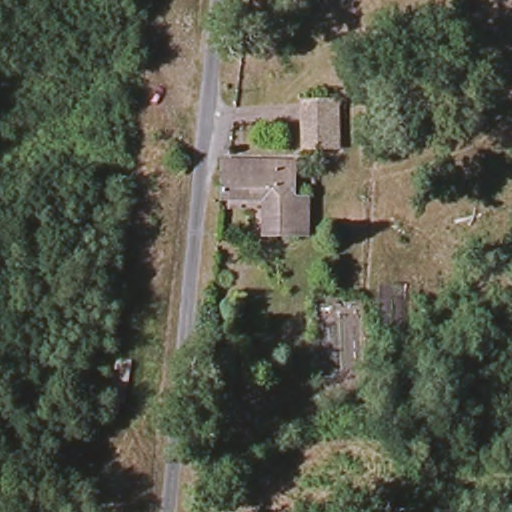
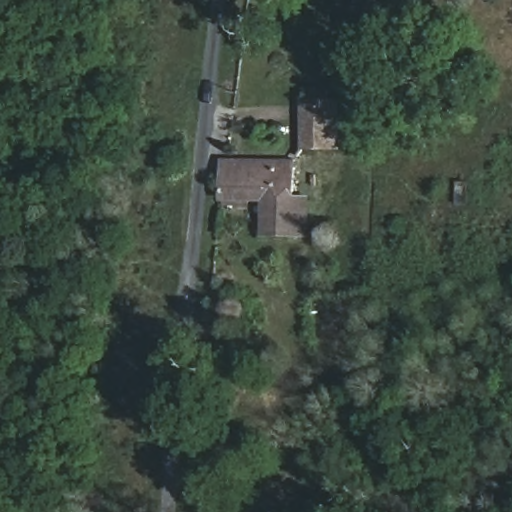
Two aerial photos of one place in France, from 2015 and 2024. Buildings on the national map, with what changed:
unchanged [(335,103),(332,146),(319,146),(299,147),(298,103),(303,103),(335,103)]
unchanged [(221,207),(220,164),(283,162),(281,201),(255,205),(240,207),(221,207)]
unchanged [(296,230),(257,233),(255,205),(281,201),(295,200),(296,227),(296,230)]

